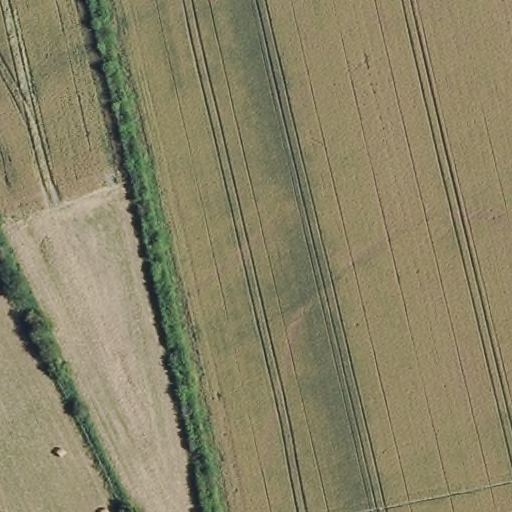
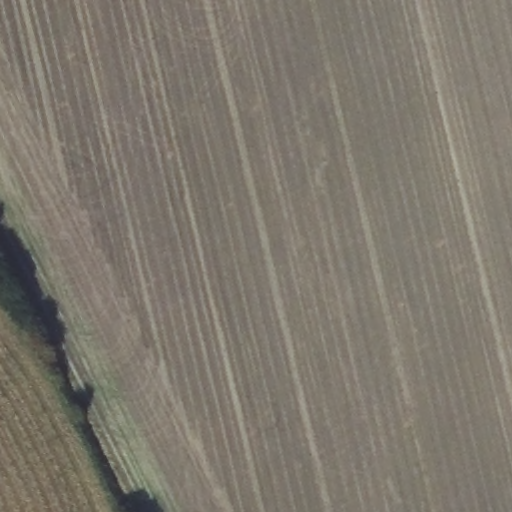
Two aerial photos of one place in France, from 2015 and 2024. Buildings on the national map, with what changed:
[]

